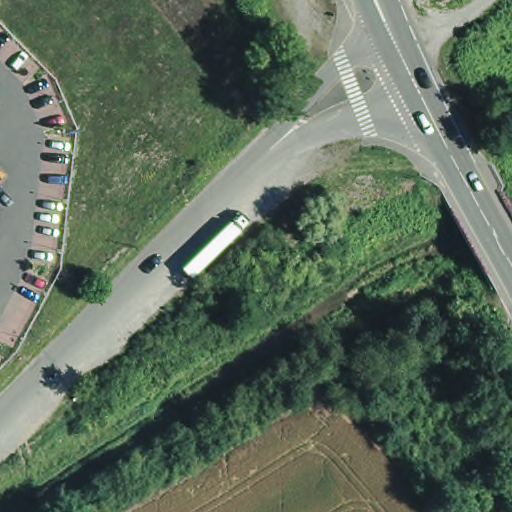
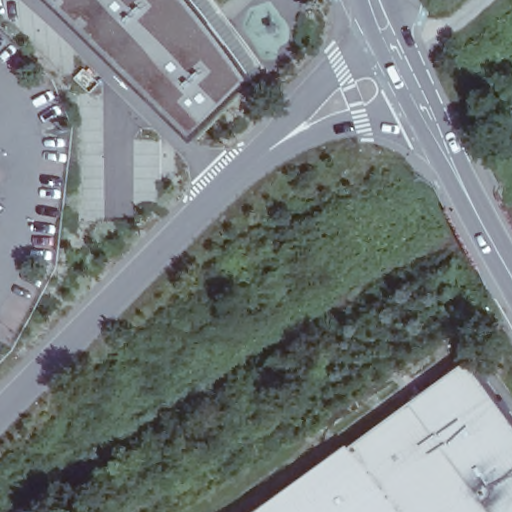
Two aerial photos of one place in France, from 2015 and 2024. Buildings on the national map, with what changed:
new [(264,81),(204,134),(123,55),(65,0),(199,0),(264,81)]
new [(512,427),(512,512),(241,512),(457,356),(512,427)]

